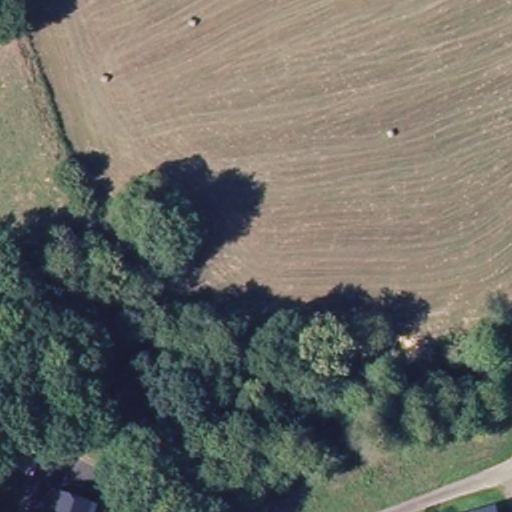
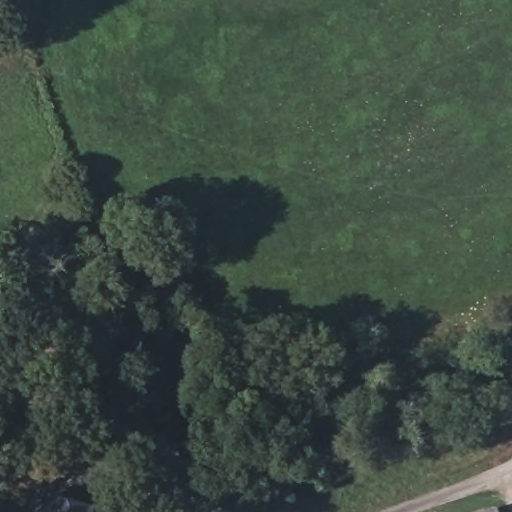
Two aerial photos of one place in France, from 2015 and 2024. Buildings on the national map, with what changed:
unchanged [(87,512),(39,512),(44,498),(87,512)]

